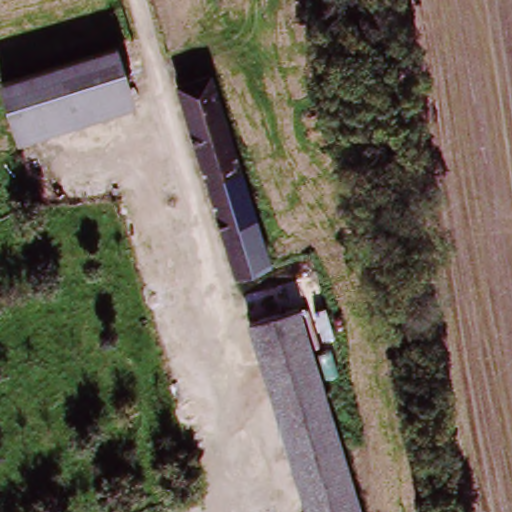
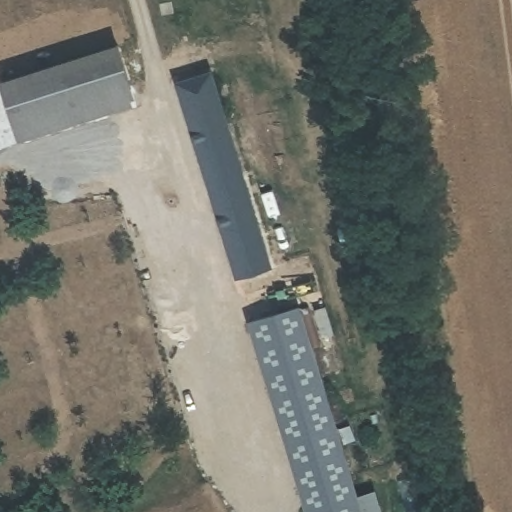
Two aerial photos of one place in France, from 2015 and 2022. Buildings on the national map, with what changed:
unchanged [(13,123),(3,84),(122,50),(133,90),(13,123)]
unchanged [(180,74),(210,65),(272,272),(279,298),(248,307),(180,74)]
unchanged [(344,512),(310,512),(248,307),(279,298),(286,322),(344,512)]

